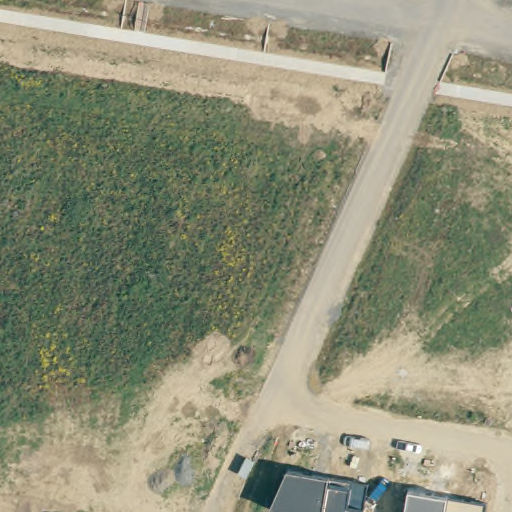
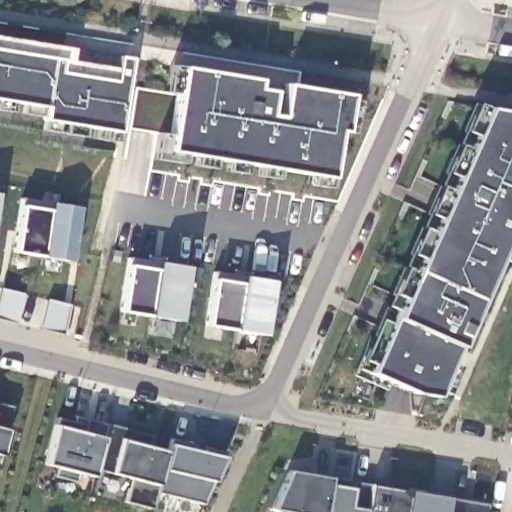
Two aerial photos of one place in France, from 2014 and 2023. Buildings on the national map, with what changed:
new [(72,46),(69,60),(114,69),(115,57),(128,58),(115,131),(42,119),(44,106),(0,99),(0,36),(72,46)]
new [(167,149),(180,67),(256,79),(254,88),(269,91),(266,113),(277,115),(282,84),(347,95),(340,130),(334,129),(327,176),(167,149)]
new [(512,216),(454,347),(432,395),(411,393),(362,372),(389,317),(483,107),(512,112),(512,216)]
new [(20,206),(47,210),(48,203),(77,207),(69,259),(14,251),(20,206)]
new [(126,265),(154,269),(155,262),(184,266),(176,318),(120,310),(126,265)]
new [(207,324),(213,279),(242,283),(242,276),(271,279),(260,334),(207,324)]
new [(12,406),(7,430),(0,453),(0,403),(12,406)]
new [(57,417),(72,422),(73,416),(105,423),(102,438),(91,476),(78,472),(75,482),(52,477),(55,467),(45,464),(54,426),(57,417)]
new [(95,469),(107,424),(152,435),(149,447),(167,451),(152,509),(124,502),(130,479),(95,469)]
new [(222,456),(212,480),(201,503),(157,493),(162,470),(169,442),(222,456)]
unchanged [(290,471),(367,484),(363,512),(278,512),(273,510),(290,471)]
new [(405,512),(363,512),(367,484),(407,493),(405,512)]
unchanged [(485,505),(484,512),(405,512),(407,493),(485,505)]

